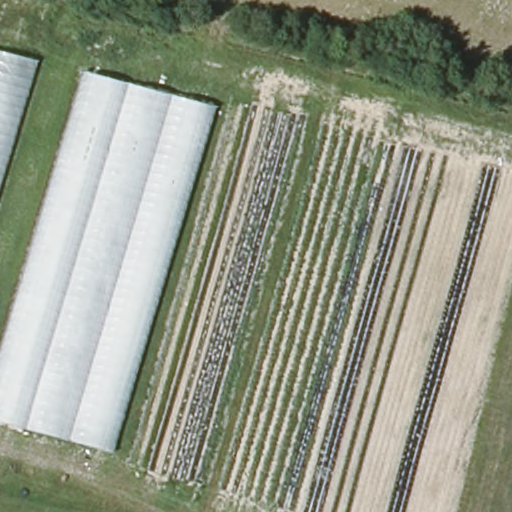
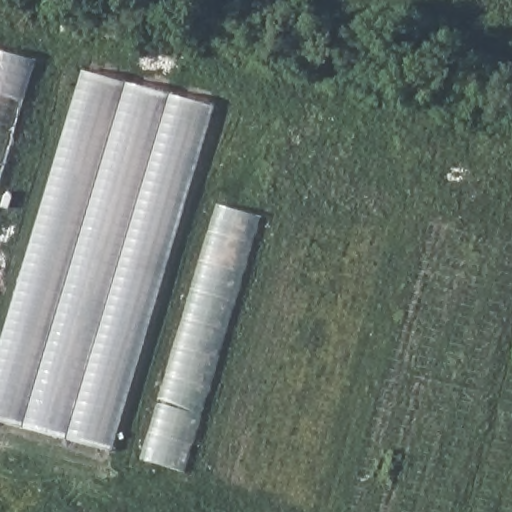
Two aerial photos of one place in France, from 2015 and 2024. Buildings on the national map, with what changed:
unchanged [(0,182),(0,50),(37,60),(0,182)]
unchanged [(0,421),(0,342),(82,71),(214,106),(111,450),(0,421)]
new [(262,217),(186,472),(141,460),(218,205),(262,217)]

